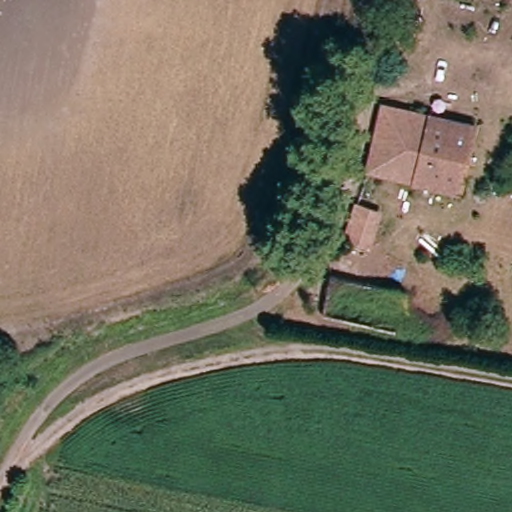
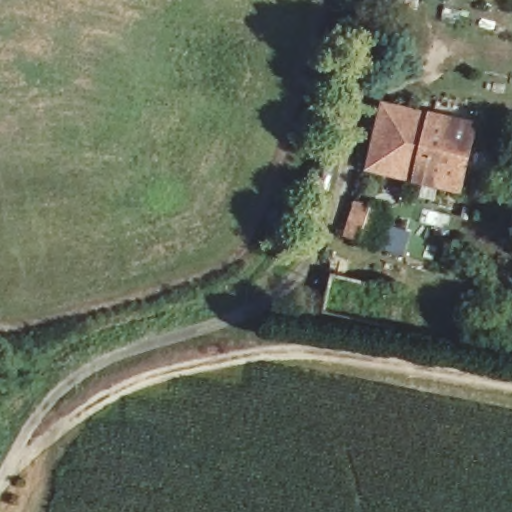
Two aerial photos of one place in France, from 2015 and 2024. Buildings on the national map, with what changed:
unchanged [(476,126),(461,192),(367,169),(383,104),(476,126)]
unchanged [(371,239),(347,230),(358,198),(382,207),(371,239)]

